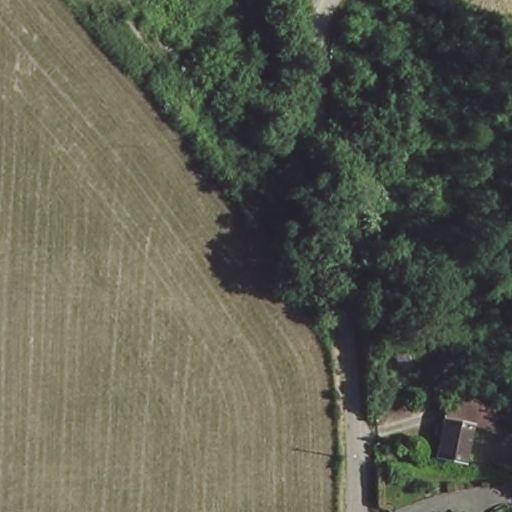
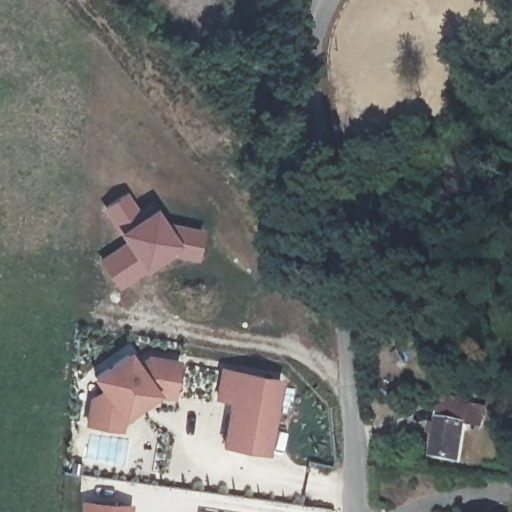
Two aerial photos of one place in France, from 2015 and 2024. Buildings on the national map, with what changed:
new [(169,222),(170,221),(204,228),(196,261),(178,258),(170,258),(148,273),(124,240),(118,231),(103,209),(128,191),(143,212),(156,204),(169,222)]
new [(124,240),(148,273),(122,293),(98,262),(124,240)]
new [(156,395),(122,420),(122,431),(84,425),(88,394),(98,388),(90,375),(129,349),(137,360),(148,355),(180,359),(174,398),(156,395)]
new [(219,367),(283,376),(270,454),(221,446),(228,401),(213,398),(219,367)]
unchanged [(464,423),(461,424),(459,460),(430,454),(439,402),(466,405),(464,423)]
new [(80,512),(81,499),(132,503),(131,512),(80,512)]

